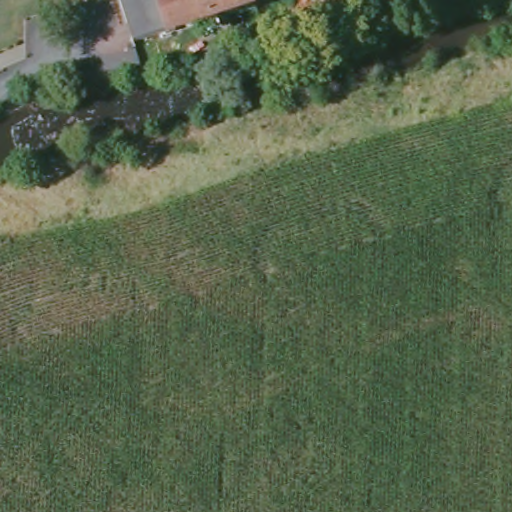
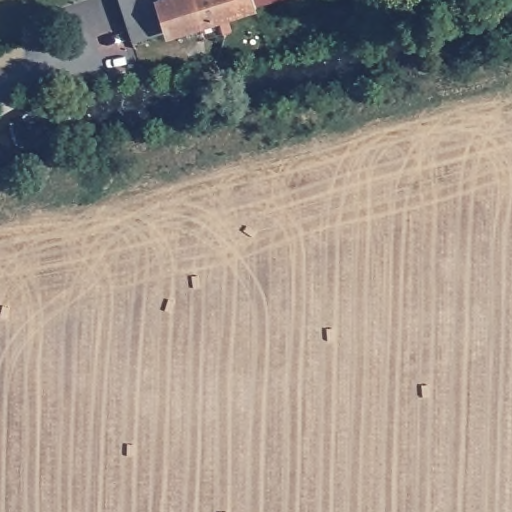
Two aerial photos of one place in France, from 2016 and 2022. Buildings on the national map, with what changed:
unchanged [(272,0),(249,7),(235,11),(233,40),(213,40),(212,19),(128,46),(114,0),(272,0)]

